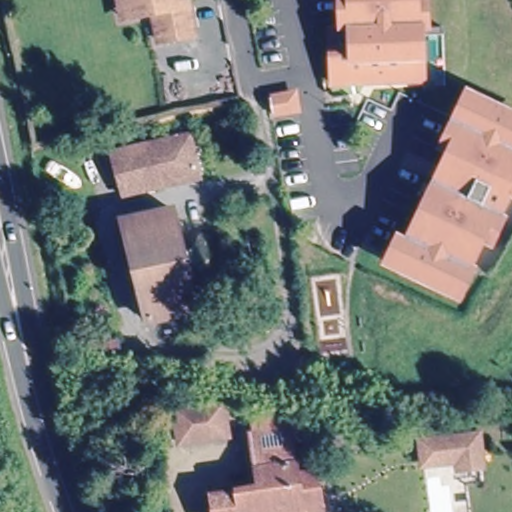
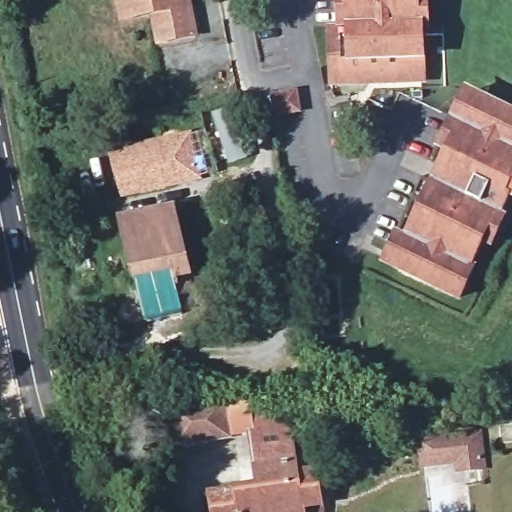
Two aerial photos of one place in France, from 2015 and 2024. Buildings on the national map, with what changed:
unchanged [(175,16),(183,14),(189,40),(156,45),(152,20),(127,22),(119,23),(116,0),(171,0),(175,16)]
unchanged [(337,31),(356,31),(356,0),(424,0),(424,29),(428,29),(428,30),(430,83),(338,85),(337,31)]
unchanged [(271,110),(269,95),(269,94),(295,90),(298,106),(271,110)]
unchanged [(458,295),(394,264),(435,179),(451,186),(459,171),(443,163),(450,149),(441,145),(467,92),(475,96),(476,94),(512,111),(512,178),(505,192),(508,194),(500,212),(496,210),(494,213),(503,217),(491,242),(482,238),(469,265),(473,266),(458,295)]
unchanged [(118,151),(188,135),(197,172),(126,189),(118,151)]
unchanged [(146,320),(122,219),(166,209),(181,273),(169,275),(173,293),(167,294),(171,313),(146,320)]
unchanged [(171,415),(226,407),(231,440),(177,450),(171,415)]
unchanged [(245,433),(287,430),(291,476),(311,474),(315,505),(297,506),(298,512),(211,512),(208,493),(253,486),(245,433)]
unchanged [(415,438),(483,431),(486,471),(456,474),(455,465),(420,470),(415,438)]

